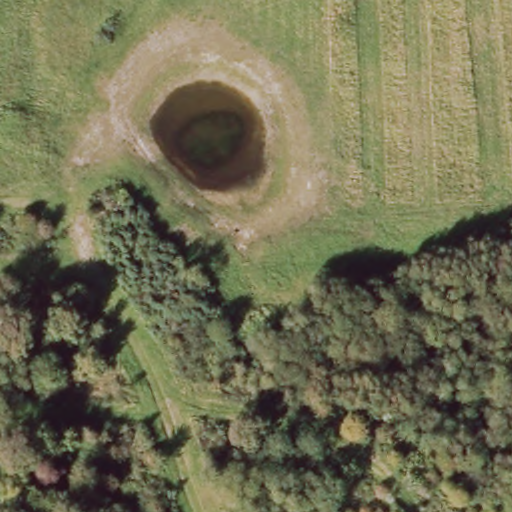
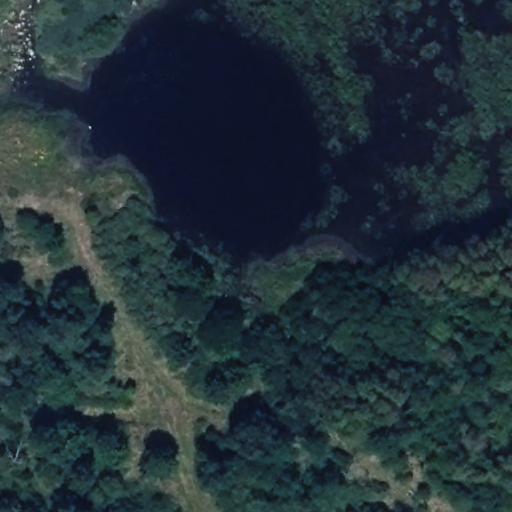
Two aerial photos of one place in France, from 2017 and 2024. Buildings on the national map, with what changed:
unchanged [(49,133),(26,148),(14,129),(35,114),(49,133)]

